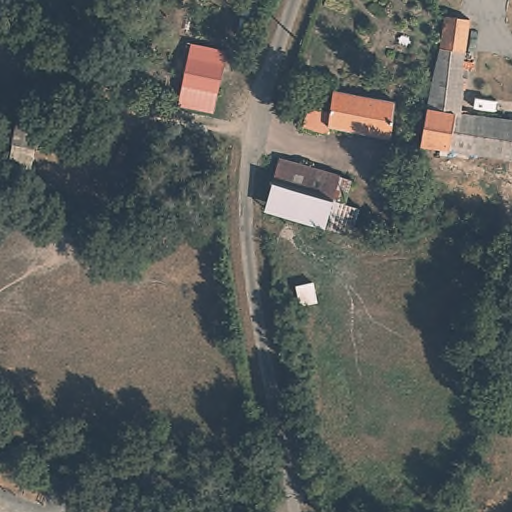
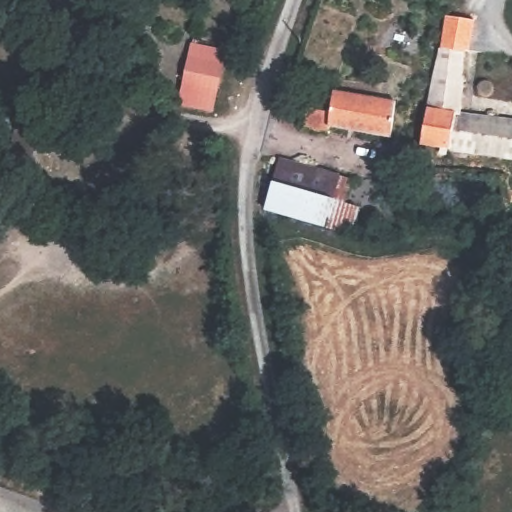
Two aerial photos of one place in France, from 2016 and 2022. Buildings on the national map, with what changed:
unchanged [(482,152),(457,150),(423,146),(417,144),(426,91),(433,56),(443,12),(465,16),(446,112),(512,123),(512,157),(482,152)]
unchanged [(197,43),(229,53),(210,111),(178,100),(197,43)]
unchanged [(322,97),(326,84),(397,97),(390,133),(321,120),(320,123),(300,120),(305,95),(322,97)]
unchanged [(280,158),(355,172),(350,197),(276,183),(280,158)]
unchanged [(276,183),(350,197),(361,199),(358,214),(355,226),(272,207),(275,190),(276,183)]

